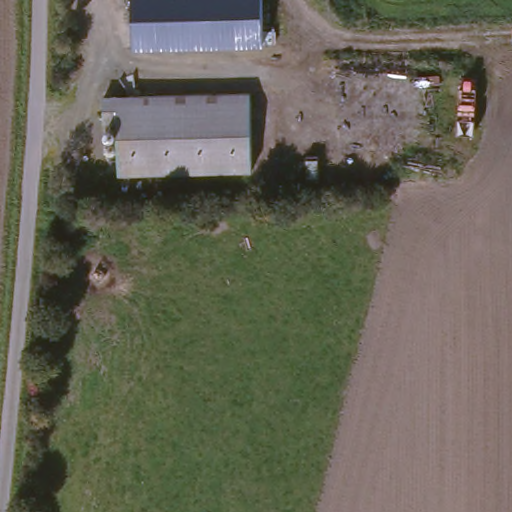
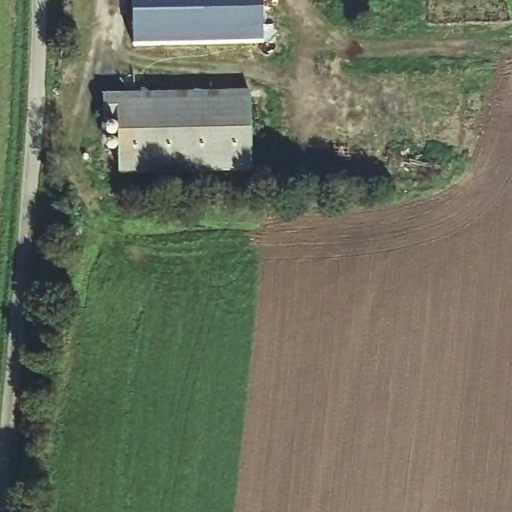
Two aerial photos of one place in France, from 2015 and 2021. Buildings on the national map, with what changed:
unchanged [(135,0),(265,0),(264,43),(134,42),(135,0)]
unchanged [(252,93),(251,170),(116,167),(115,116),(101,115),(104,89),(252,93)]

